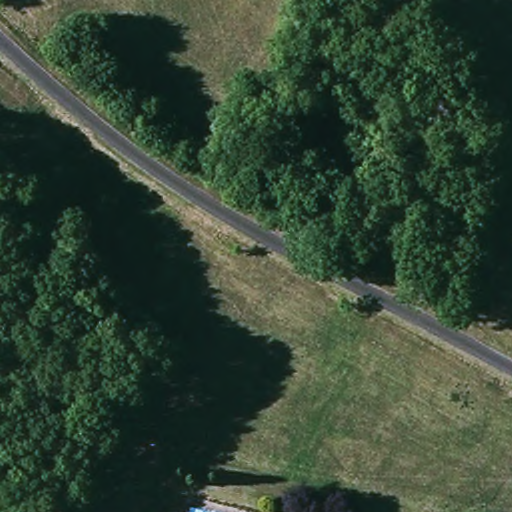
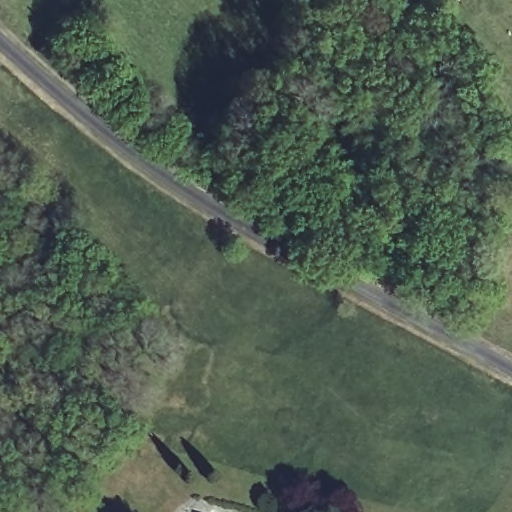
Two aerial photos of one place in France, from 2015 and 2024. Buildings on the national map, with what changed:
unchanged [(417,39),(412,49),(403,44),(407,35),(417,39)]

